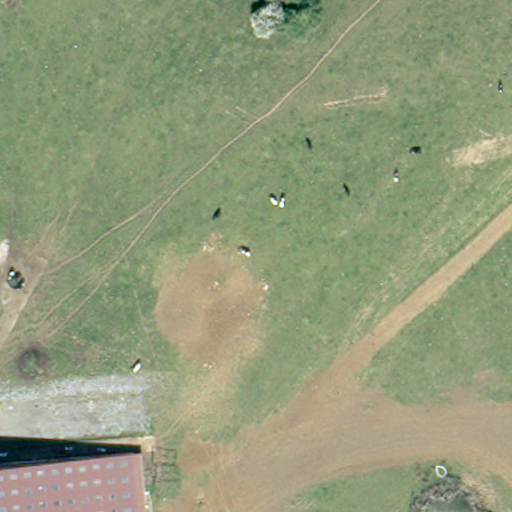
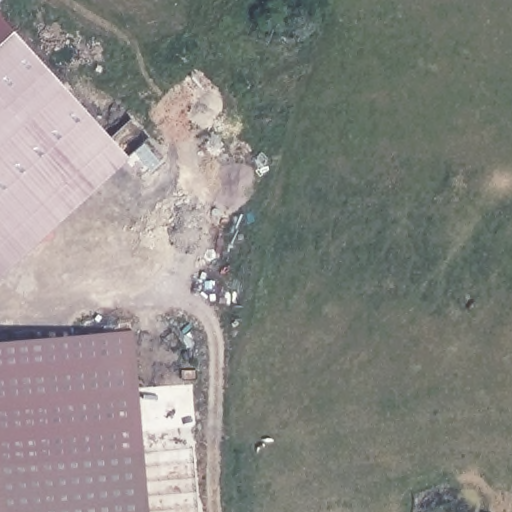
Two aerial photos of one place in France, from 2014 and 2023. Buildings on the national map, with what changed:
new [(128,157),(0,275),(0,20),(128,157)]
new [(132,331),(142,457),(113,460),(0,469),(0,341),(132,331)]
unchanged [(113,460),(142,457),(147,512),(0,512),(0,469),(113,460)]

